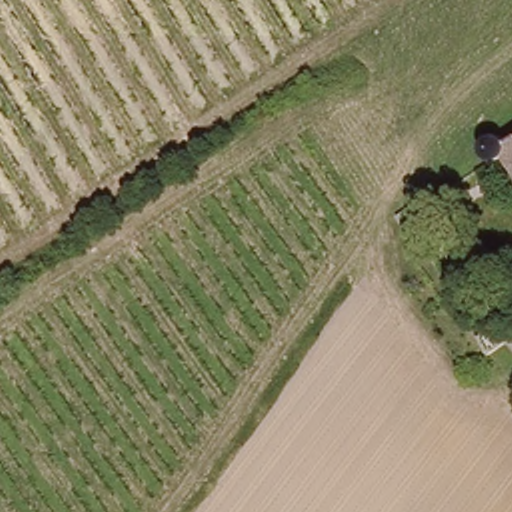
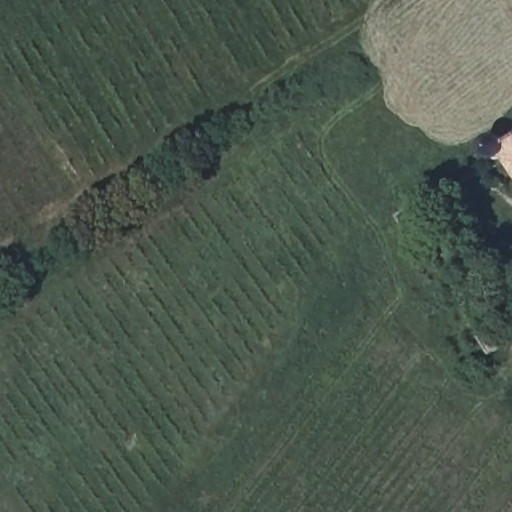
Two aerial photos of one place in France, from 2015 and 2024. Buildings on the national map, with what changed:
unchanged [(512,140),(512,168),(499,150),(512,140)]

